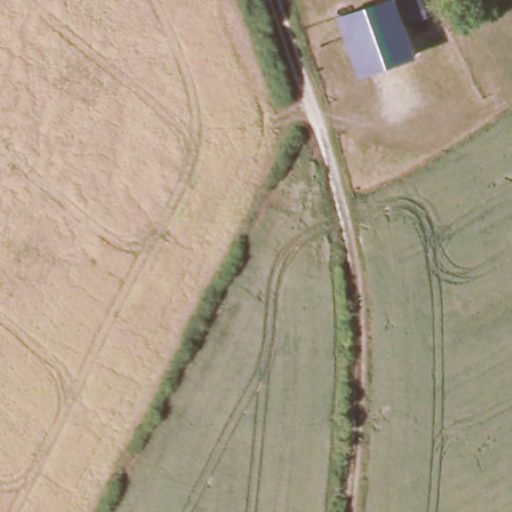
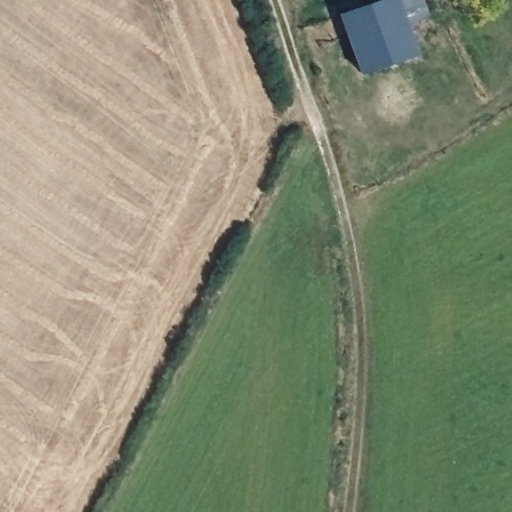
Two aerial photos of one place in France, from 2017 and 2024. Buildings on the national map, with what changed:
unchanged [(405,1),(420,56),(365,77),(349,19),(405,1)]

